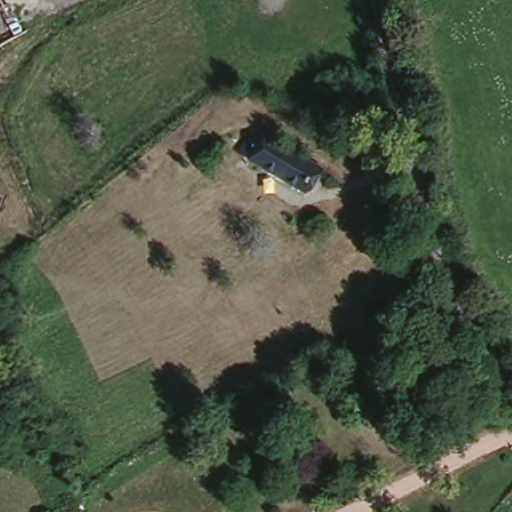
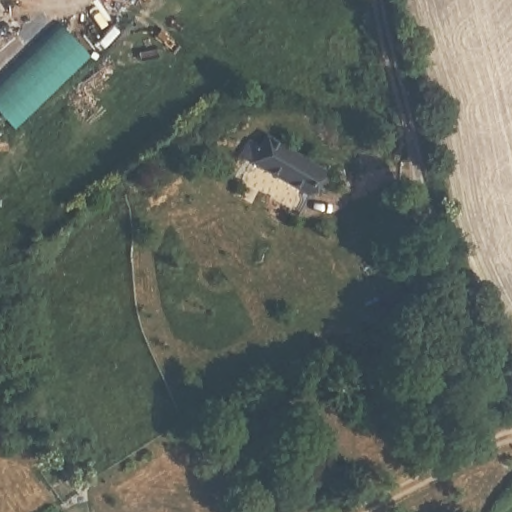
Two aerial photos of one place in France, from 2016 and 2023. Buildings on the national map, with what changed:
new [(58,25),(89,58),(13,130),(0,115),(0,81),(58,25)]
unchanged [(261,165),(237,150),(250,134),(259,142),(266,131),(324,170),(308,196),(261,165)]

